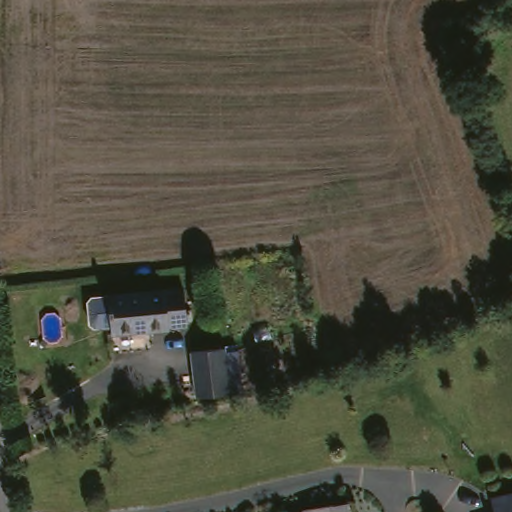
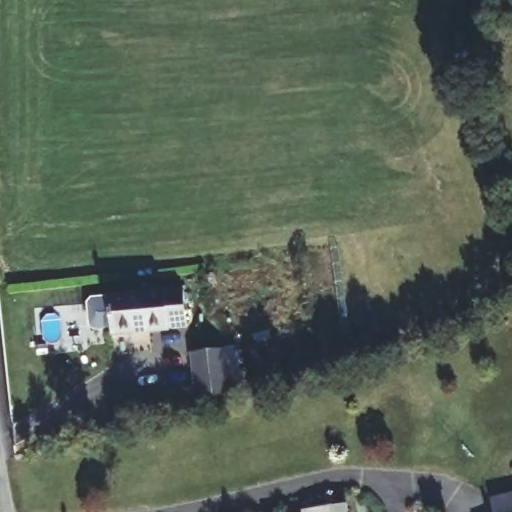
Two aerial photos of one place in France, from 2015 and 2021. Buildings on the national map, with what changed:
unchanged [(191,321),(174,323),(172,327),(119,335),(114,300),(187,287),(191,321)]
unchanged [(229,345),(230,352),(245,351),(248,386),(199,390),(195,348),(229,345)]
unchanged [(512,491),(512,512),(499,512),(496,495),(512,491)]
unchanged [(354,499),(356,512),(306,512),(305,506),(354,499)]

